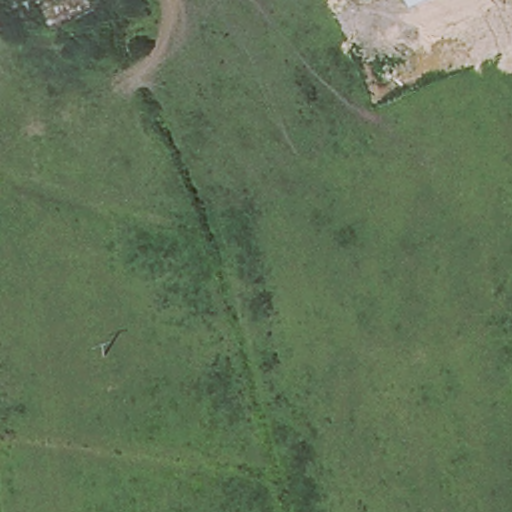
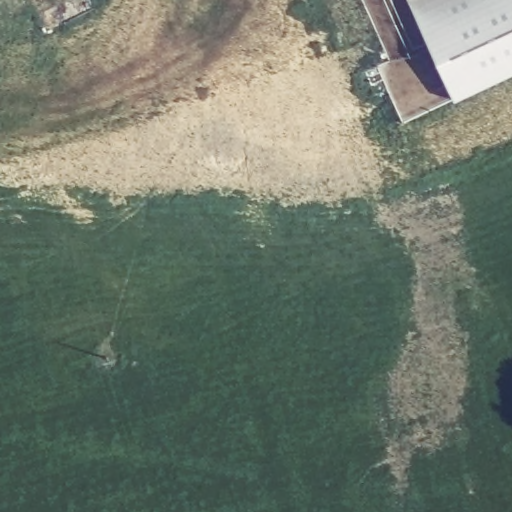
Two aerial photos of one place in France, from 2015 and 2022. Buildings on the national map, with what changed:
unchanged [(402,0),(425,0),(406,9),(402,0)]
new [(406,9),(425,0),(512,0),(512,78),(452,106),(406,9)]

